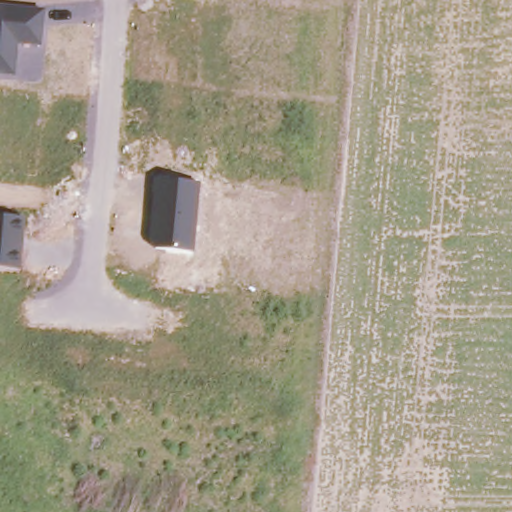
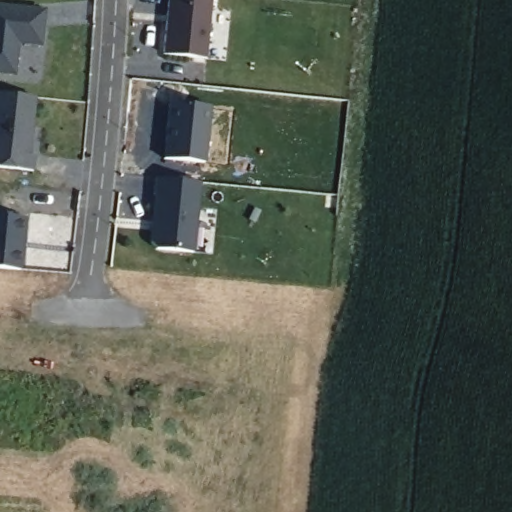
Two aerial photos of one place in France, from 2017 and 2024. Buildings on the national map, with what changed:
new [(162,55),(167,0),(210,0),(205,59),(162,55)]
unchanged [(43,47),(20,45),(17,76),(0,74),(0,5),(47,10),(43,47)]
new [(29,154),(34,155),(32,169),(0,165),(0,92),(33,96),(29,154)]
new [(208,106),(203,161),(163,157),(168,101),(208,106)]
unchanged [(202,184),(195,251),(149,246),(155,180),(202,184)]
unchanged [(23,271),(0,268),(0,216),(27,218),(23,271)]

